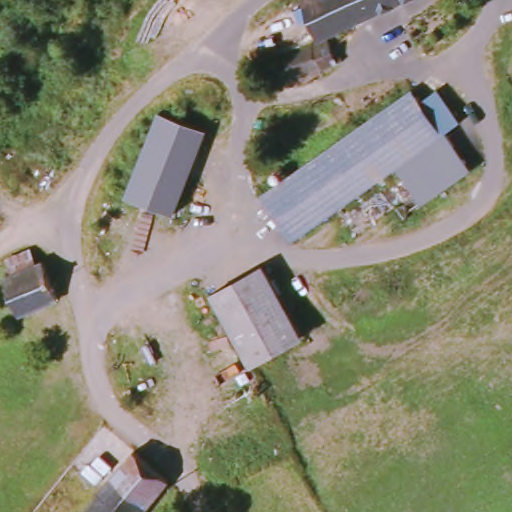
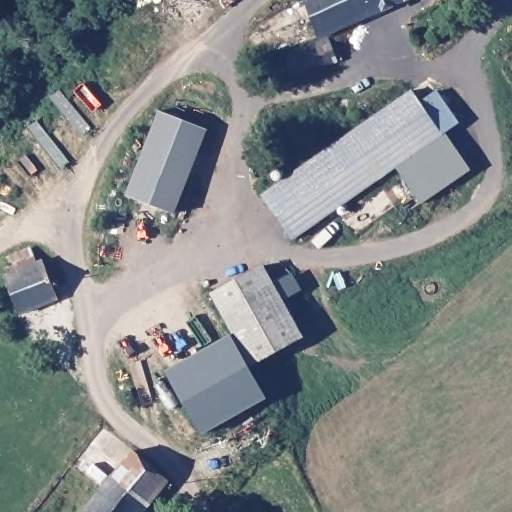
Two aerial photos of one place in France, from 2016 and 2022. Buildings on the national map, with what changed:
unchanged [(318,35),(304,0),(401,0),(318,35)]
unchanged [(338,61),(321,67),(319,63),(294,75),(285,55),(326,37),(338,61)]
unchanged [(404,97),(411,107),(427,96),(441,115),(441,134),(432,139),(433,140),(293,237),(261,196),(404,97)]
unchanged [(160,110),(208,126),(179,212),(131,197),(160,110)]
unchanged [(421,202),(394,167),(433,140),(432,139),(441,134),(471,170),(421,202)]
unchanged [(33,258),(39,255),(55,295),(18,314),(0,275),(9,268),(5,262),(24,246),(33,258)]
unchanged [(259,269),(293,343),(243,366),(209,292),(259,269)]
demolished [(205,403),(178,371),(221,336),(246,369),(205,403)]
new [(166,372),(231,337),(243,366),(248,363),(269,397),(201,436),(166,372)]
unchanged [(83,512),(130,454),(164,482),(140,512),(83,512)]

